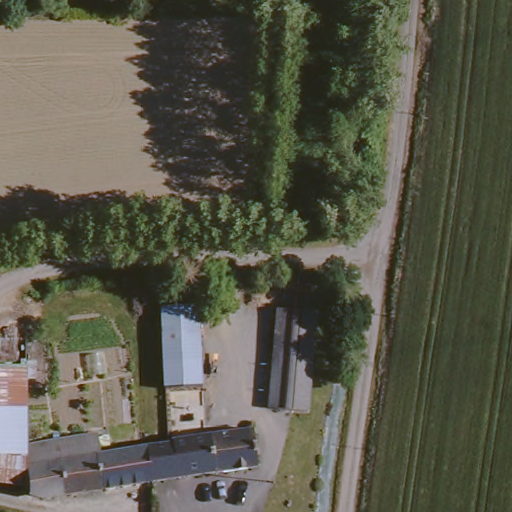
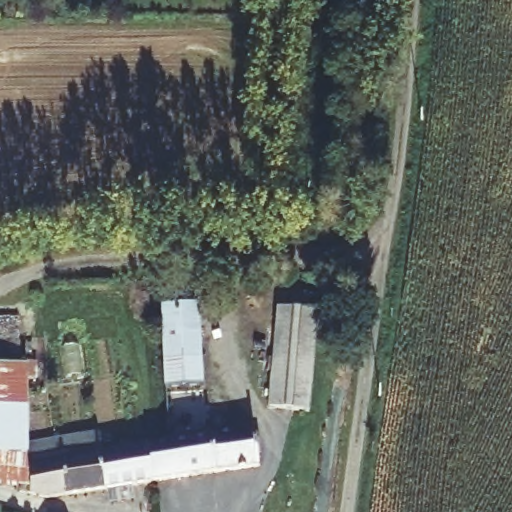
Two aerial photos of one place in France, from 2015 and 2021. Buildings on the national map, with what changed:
unchanged [(169,305),(204,302),(212,423),(211,430),(175,435),(169,305)]
unchanged [(307,315),(335,317),(324,393),(322,402),(299,401),(298,410),(260,405),(270,306),(308,310),(307,315)]
unchanged [(29,437),(29,458),(23,459),(26,481),(0,478),(0,361),(33,359),(29,437)]
unchanged [(175,435),(211,430),(267,420),(269,433),(263,435),(265,458),(153,476),(149,439),(175,435)]
unchanged [(101,428),(104,446),(29,458),(29,437),(101,428)]
unchanged [(149,439),(153,476),(56,492),(28,487),(26,481),(23,459),(29,458),(104,446),(149,439)]
unchanged [(54,511),(54,512),(53,512),(54,511)]

